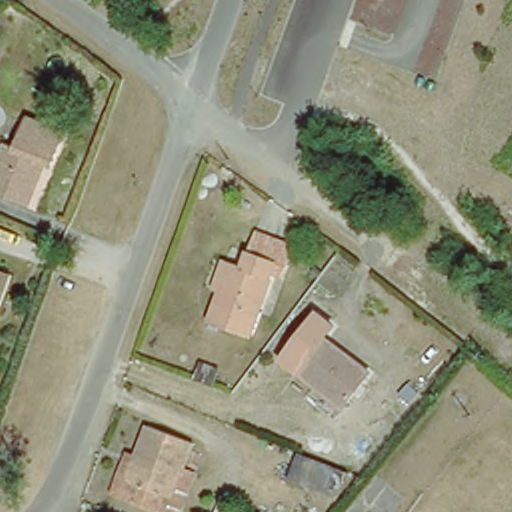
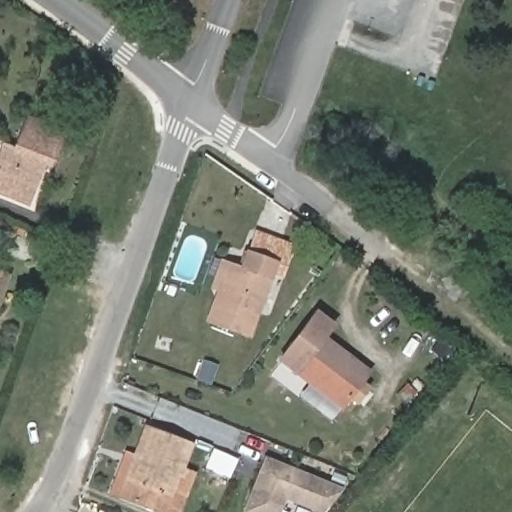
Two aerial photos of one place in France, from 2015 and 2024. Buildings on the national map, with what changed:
unchanged [(32,196),(0,185),(0,157),(1,156),(11,160),(26,115),(63,128),(51,162),(44,160),(32,196)]
unchanged [(283,272),(276,269),(252,331),(210,315),(222,284),(232,257),(246,262),(250,252),(259,229),(280,237),(294,242),(283,272)]
unchanged [(0,273),(6,274),(0,291),(0,273)]
unchanged [(357,403),(344,394),(337,403),(278,358),(311,314),(329,327),(321,338),(362,370),(355,379),(367,389),(357,403)]
unchanged [(145,422),(189,439),(161,510),(118,493),(132,456),(145,422)]
demolished [(306,469),(313,453),(350,469),(343,485),(306,469)]
new [(314,512),(286,500),(281,512),(242,512),(265,456),(345,488),(325,512),(314,512)]

